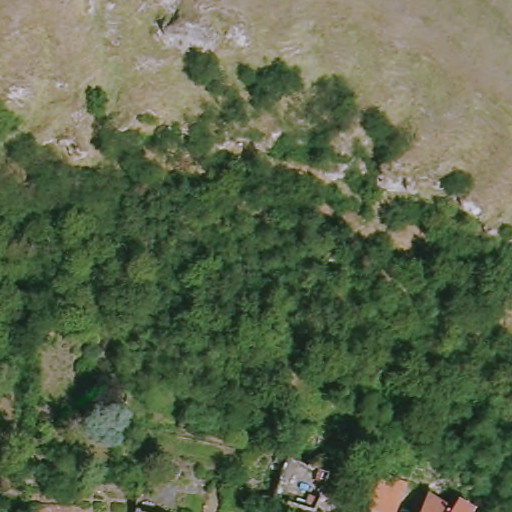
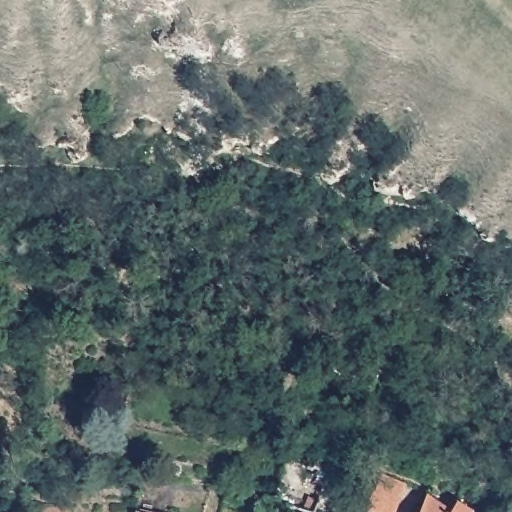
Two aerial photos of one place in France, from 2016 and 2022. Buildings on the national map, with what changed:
unchanged [(445,508),(449,497),(465,506),(463,512),(412,512),(418,492),(445,508)]
unchanged [(361,512),(372,495),(390,506),(389,512),(361,512)]
unchanged [(63,504),(63,512),(34,512),(33,505),(63,504)]
unchanged [(137,512),(131,512),(131,511),(137,512)]

